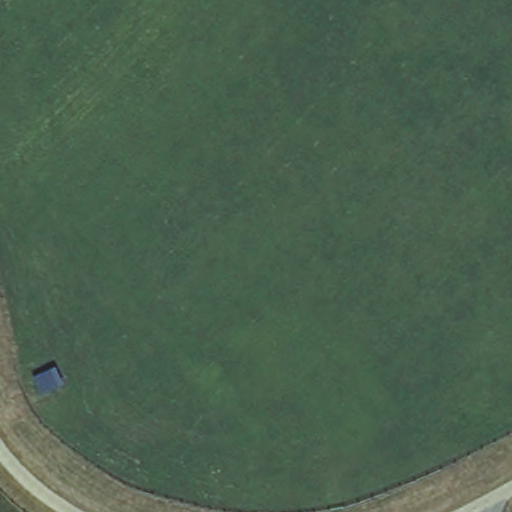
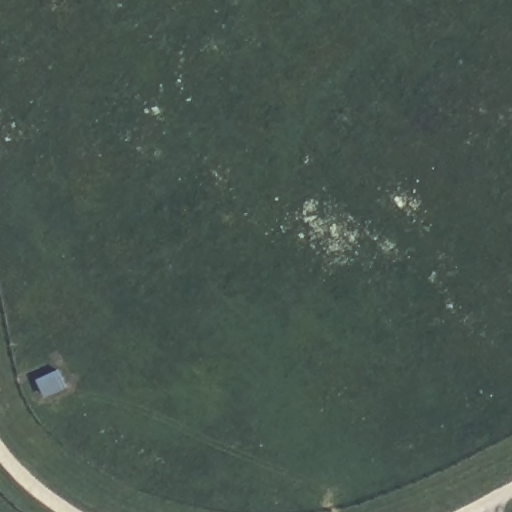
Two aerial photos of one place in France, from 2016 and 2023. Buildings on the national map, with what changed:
unchanged [(66,385),(40,397),(30,378),(55,366),(66,385)]

